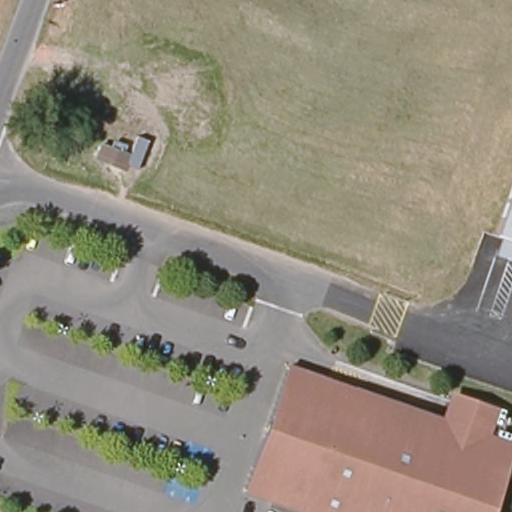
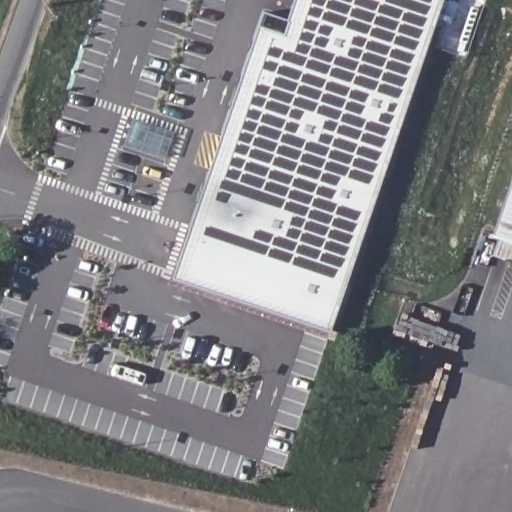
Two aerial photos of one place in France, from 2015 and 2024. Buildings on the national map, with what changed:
new [(262,25),(286,33),(298,0),(446,0),(332,332),(174,278),(262,25)]
unchanged [(496,236),(512,190),(512,242),(496,236)]
unchanged [(308,378),(266,500),(243,492),(285,370),(308,378)]
unchanged [(455,399),(492,412),(482,440),(510,450),(489,512),(300,512),(266,500),(308,378),(445,427),(455,399)]

